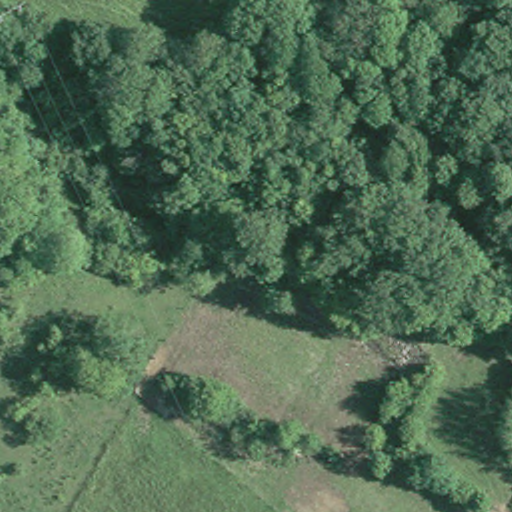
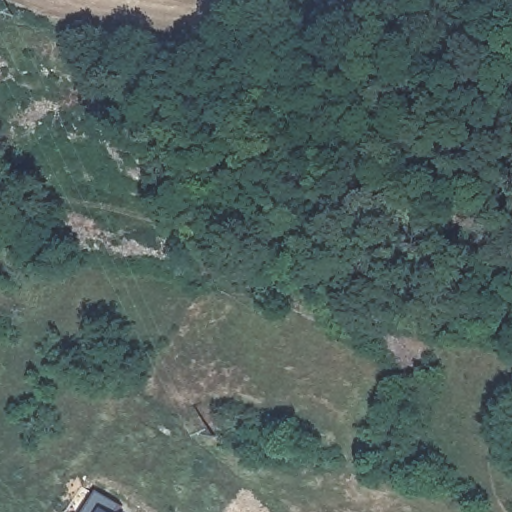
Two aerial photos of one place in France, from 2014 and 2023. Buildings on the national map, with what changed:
new [(96,491),(120,503),(115,512),(83,512),(96,491)]

